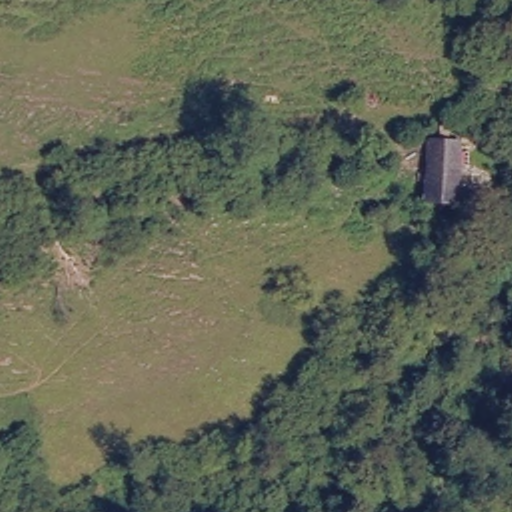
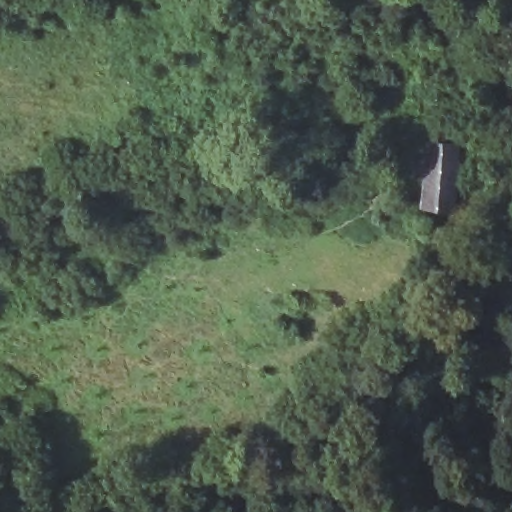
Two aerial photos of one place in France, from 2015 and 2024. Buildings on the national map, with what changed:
unchanged [(466,145),(460,203),(426,200),(430,141),(466,145)]

